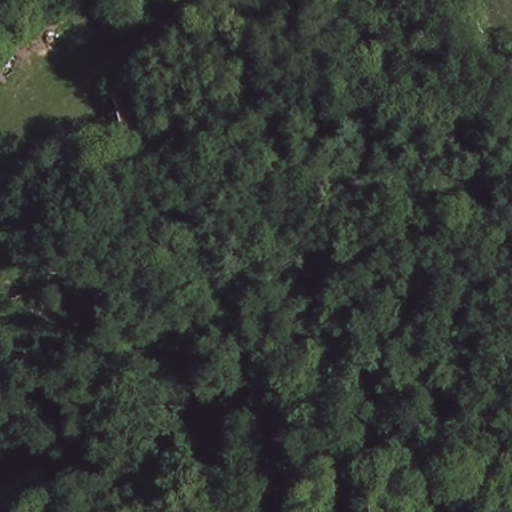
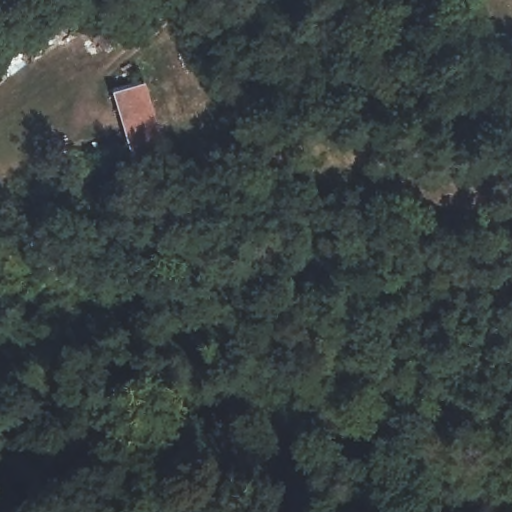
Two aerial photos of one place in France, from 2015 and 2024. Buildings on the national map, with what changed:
new [(112,93),(143,84),(156,132),(125,140),(112,93)]

